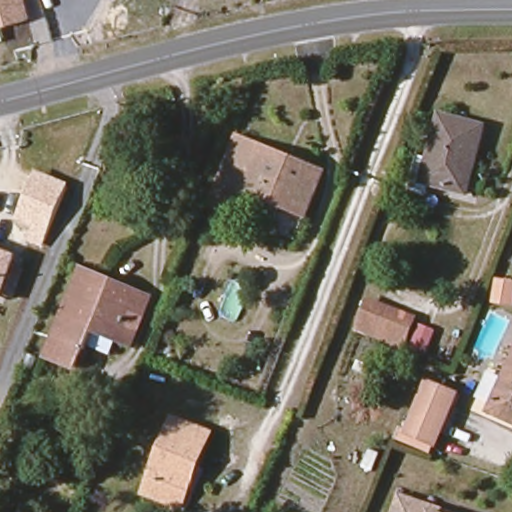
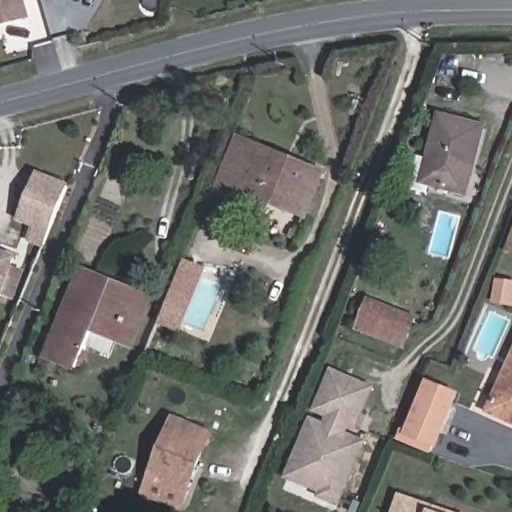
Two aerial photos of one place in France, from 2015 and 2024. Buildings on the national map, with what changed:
unchanged [(0,26),(0,0),(25,0),(30,17),(0,26)]
unchanged [(423,165),(438,119),(479,133),(457,199),(422,189),(417,187),(423,165)]
unchanged [(206,204),(217,181),(236,136),(317,167),(298,212),(238,189),(229,213),(206,204)]
unchanged [(16,220),(36,171),(69,184),(43,247),(27,239),(33,227),(16,220)]
unchanged [(3,289),(0,295),(0,244),(18,251),(3,289)]
new [(182,334),(156,324),(184,258),(209,269),(182,334)]
unchanged [(87,333),(70,371),(43,358),(79,268),(100,277),(94,291),(129,304),(114,344),(87,333)]
unchanged [(492,303),(497,276),(512,279),(512,305),(492,303)]
unchanged [(114,344),(129,304),(94,291),(100,277),(147,296),(156,299),(134,352),(128,349),(114,344)]
unchanged [(419,322),(418,325),(407,345),(398,365),(389,361),(393,348),(358,331),(370,300),(419,322)]
unchanged [(484,417),(512,359),(512,430),(484,417)]
new [(288,477),(294,459),(311,420),(325,426),(329,416),(316,409),(333,372),(372,389),(356,427),(345,422),(340,433),(364,443),(340,498),(338,504),(320,497),(323,491),(288,477)]
unchanged [(451,397),(428,444),(404,433),(426,386),(451,397)]
unchanged [(146,494),(152,481),(175,419),(210,432),(184,496),(179,507),(146,494)]
unchanged [(399,504),(423,512),(397,512),(399,504)]

